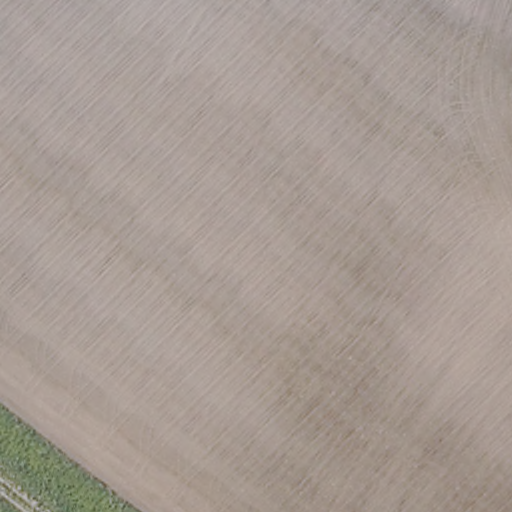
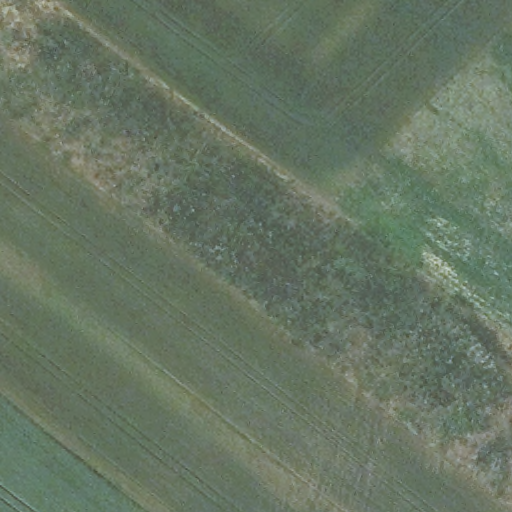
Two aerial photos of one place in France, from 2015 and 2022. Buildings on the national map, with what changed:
[]

